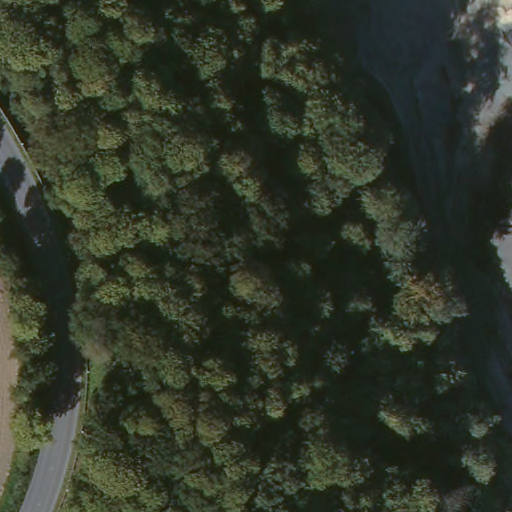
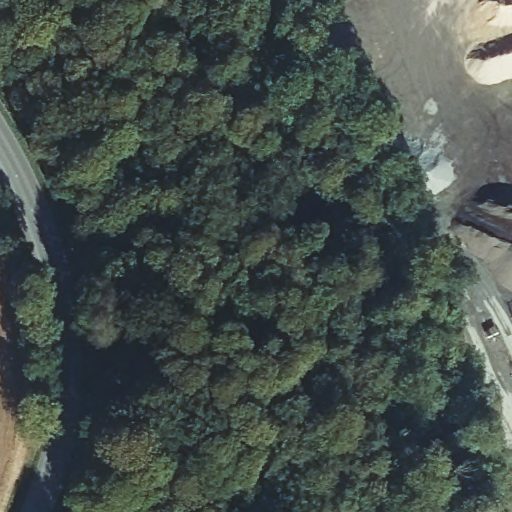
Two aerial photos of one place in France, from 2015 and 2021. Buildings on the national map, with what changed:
[]

